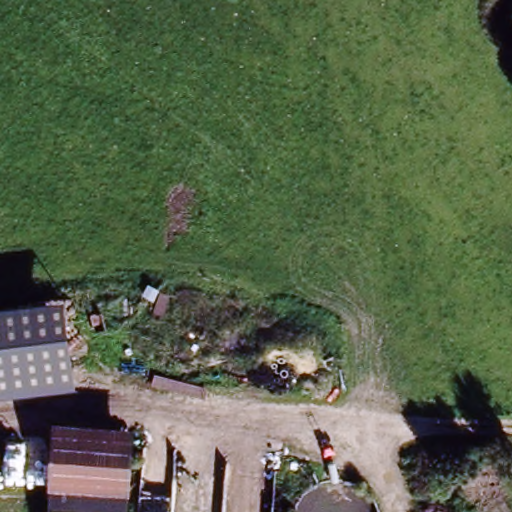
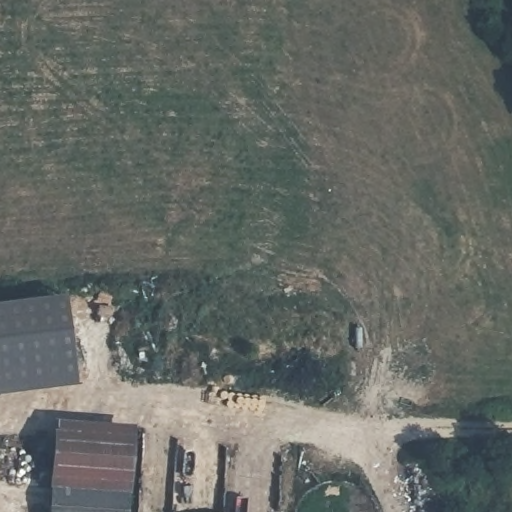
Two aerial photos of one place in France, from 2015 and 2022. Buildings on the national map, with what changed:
unchanged [(76,385),(0,395),(0,307),(62,300),(76,385)]
unchanged [(47,483),(50,436),(129,440),(127,486),(47,483)]
unchanged [(127,486),(125,512),(46,512),(47,483),(127,486)]

